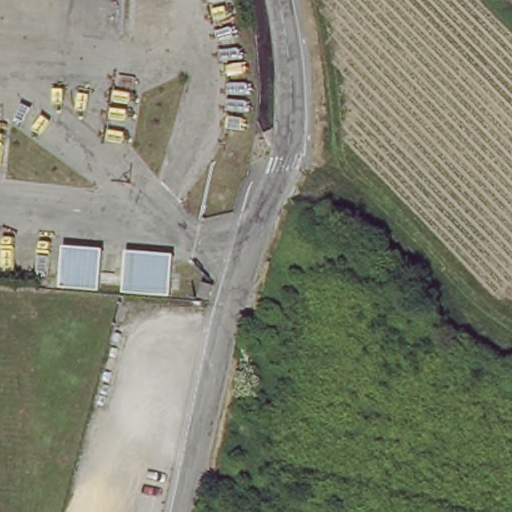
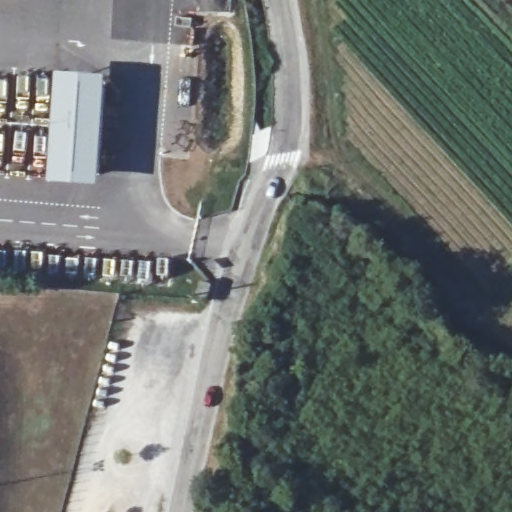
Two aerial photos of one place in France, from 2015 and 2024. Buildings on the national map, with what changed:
new [(56,70),(107,74),(99,185),(49,182),(56,70)]
unchanged [(90,253),(87,291),(48,289),(51,250),(90,253)]
unchanged [(115,254),(161,257),(158,296),(112,293),(115,254)]
unchanged [(192,293),(182,290),(185,277),(196,278),(192,293)]

